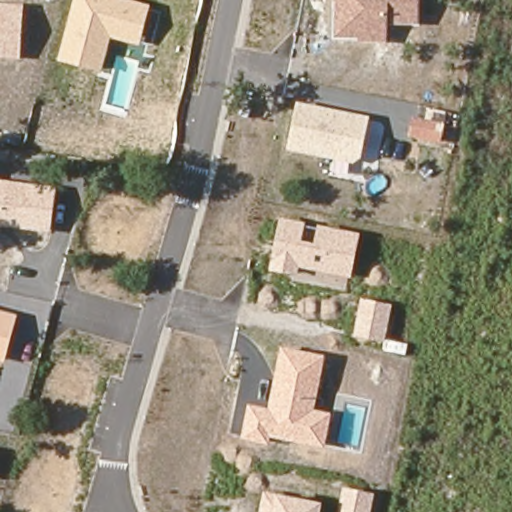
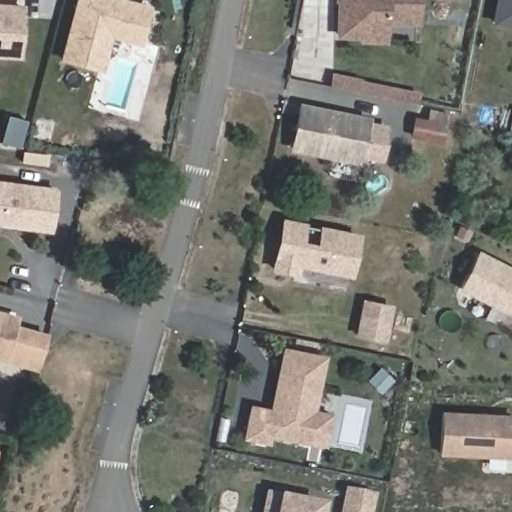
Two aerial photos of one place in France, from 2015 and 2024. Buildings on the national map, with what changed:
unchanged [(139,45),(110,38),(101,71),(57,60),(74,0),(130,0),(150,5),(139,45)]
unchanged [(386,41),(357,41),(357,38),(334,36),(336,0),(333,0),(334,0),(419,0),(419,24),(387,24),(386,41)]
new [(491,24),(496,0),(512,0),(512,29),(491,24)]
unchanged [(20,59),(0,57),(0,3),(23,4),(20,59)]
new [(415,104),(356,92),(327,86),(330,73),(360,79),(358,83),(416,94),(415,104)]
unchanged [(361,158),(352,163),(287,149),(297,102),(369,116),(361,158)]
unchanged [(51,232),(0,226),(0,179),(56,184),(51,232)]
unchanged [(360,233),(350,278),(299,268),(297,275),(270,270),(280,218),(305,222),(305,225),(316,228),(318,225),(360,233)]
new [(456,289),(476,250),(512,268),(512,317),(456,289)]
unchanged [(386,340),(353,336),(360,299),(392,304),(386,340)]
unchanged [(0,361),(0,310),(17,314),(5,363),(0,361)]
new [(511,328),(512,325),(512,328),(511,328)]
unchanged [(331,413),(324,447),(270,436),(268,444),(241,439),(248,404),(268,408),(280,348),(325,355),(315,409),(331,413)]
new [(437,455),(440,412),(512,414),(512,459),(437,455)]
unchanged [(371,512),(338,512),(342,488),(375,493),(371,512)]
unchanged [(263,493),(277,494),(322,502),(320,512),(259,512),(263,493)]

